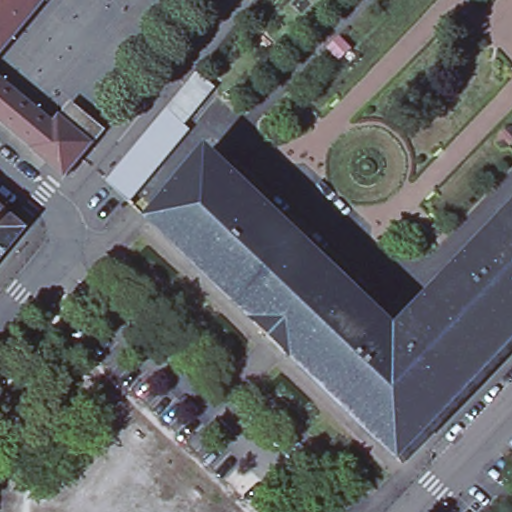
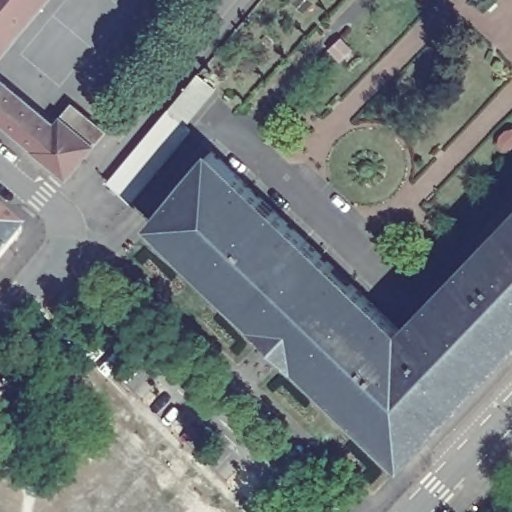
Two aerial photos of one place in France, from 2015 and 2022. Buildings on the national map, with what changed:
unchanged [(0,58),(0,0),(49,0),(0,58)]
unchanged [(131,204),(110,184),(171,110),(200,76),(215,89),(186,124),(191,130),(131,204)]
unchanged [(106,133),(93,148),(67,180),(35,153),(35,150),(0,120),(0,81),(55,126),(60,120),(73,106),(106,133)]
unchanged [(213,152),(402,331),(512,216),(512,353),(405,466),(152,225),(213,152)]
unchanged [(26,235),(0,266),(0,212),(26,235)]

